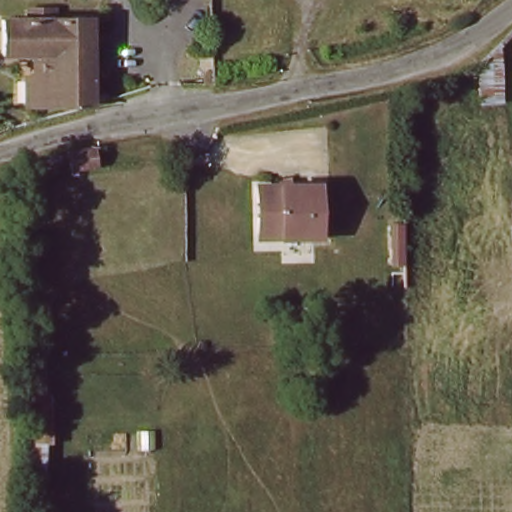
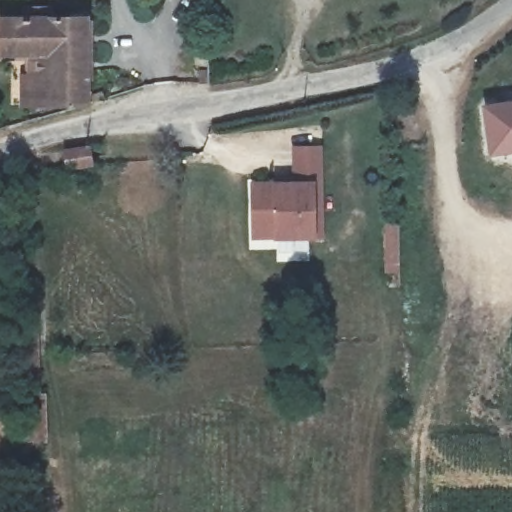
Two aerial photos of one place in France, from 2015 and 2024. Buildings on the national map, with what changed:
unchanged [(86,102),(26,103),(25,56),(0,54),(0,18),(24,17),(24,4),(53,4),(53,22),(87,22),(86,102)]
demolished [(256,74),(255,54),(284,50),(287,62),(288,69),(256,74)]
new [(512,153),(489,157),(482,106),(512,101),(512,153)]
unchanged [(63,176),(62,154),(87,149),(90,171),(67,175),(63,176)]
unchanged [(288,189),(317,188),(318,241),(290,241),(280,242),(280,237),(258,237),(257,190),(288,189)]
unchanged [(20,400),(17,321),(37,322),(38,401),(20,400)]
unchanged [(38,401),(45,401),(45,449),(20,450),(20,400),(38,401)]

